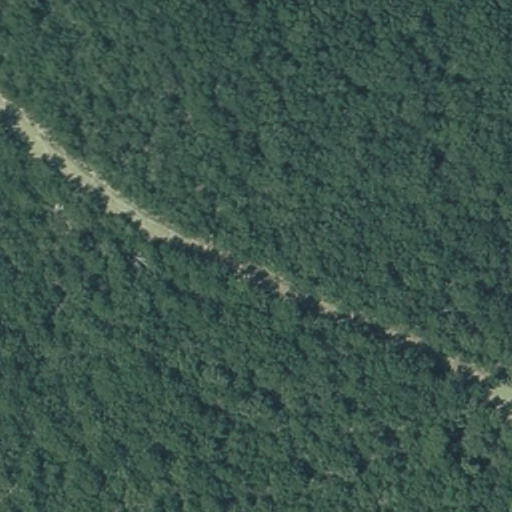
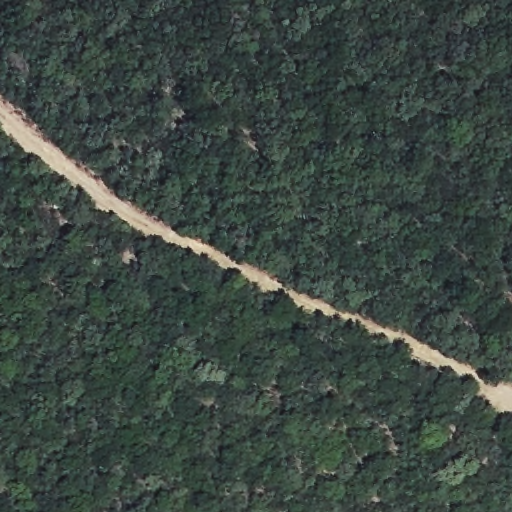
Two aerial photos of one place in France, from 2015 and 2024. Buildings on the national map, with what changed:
[]

